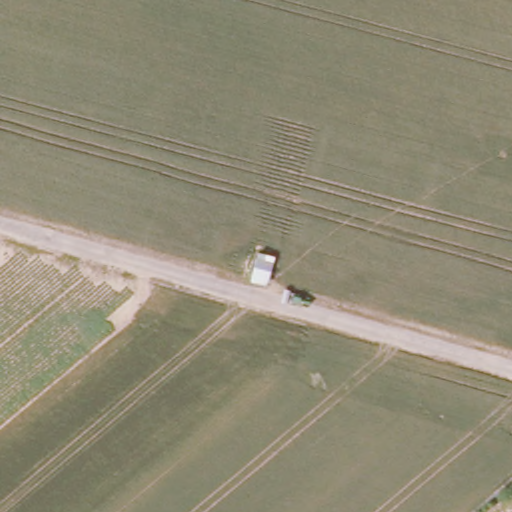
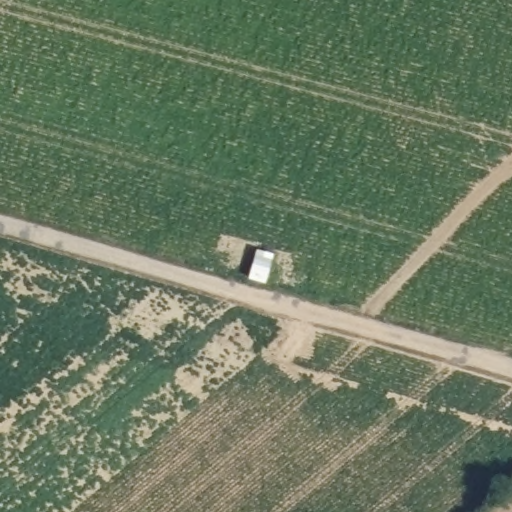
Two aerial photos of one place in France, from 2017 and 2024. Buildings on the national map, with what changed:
unchanged [(254,266),(258,255),(275,255),(272,268),(268,287),(248,284),(254,266)]

